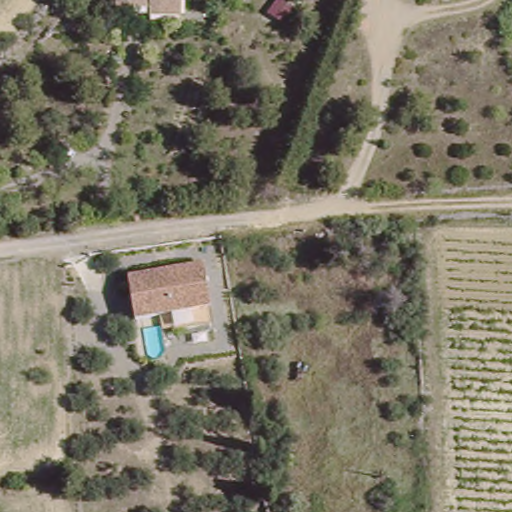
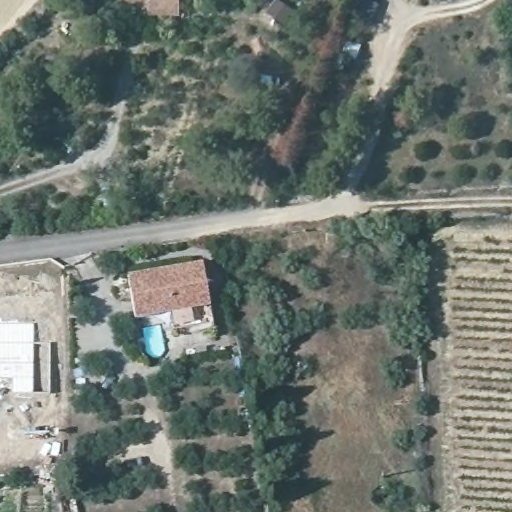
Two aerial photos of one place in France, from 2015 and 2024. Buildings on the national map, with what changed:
unchanged [(150,0),(151,10),(118,12),(117,0),(150,0)]
new [(151,18),(151,10),(150,0),(181,0),(181,18),(151,18)]
unchanged [(162,328),(161,315),(136,318),(129,274),(202,263),(210,306),(211,321),(162,328)]
new [(35,343),(51,343),(50,395),(0,393),(0,323),(35,323),(35,343)]

